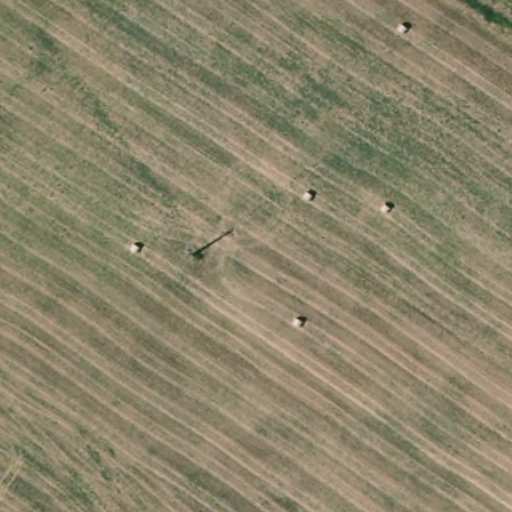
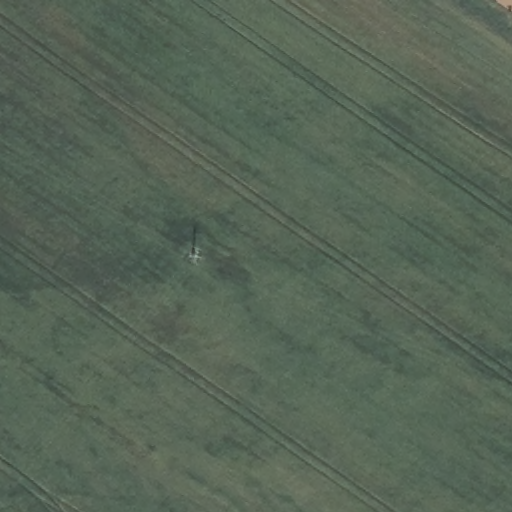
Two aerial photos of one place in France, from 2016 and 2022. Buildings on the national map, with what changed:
[]

